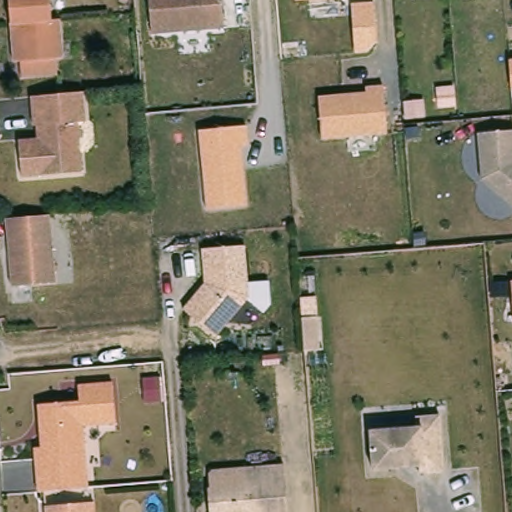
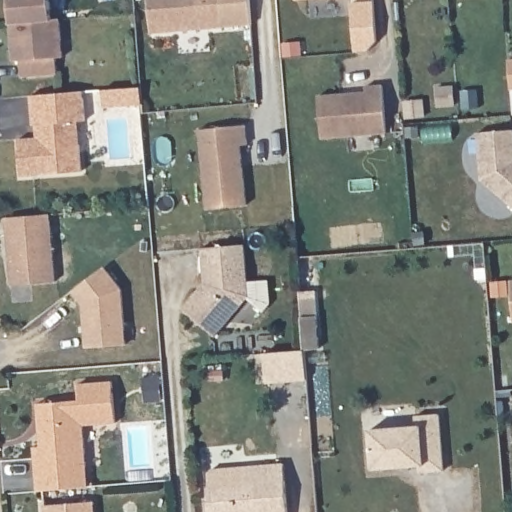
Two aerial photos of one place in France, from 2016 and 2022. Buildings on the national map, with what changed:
unchanged [(4,0),(53,0),(56,21),(6,26),(4,0)]
unchanged [(228,26),(156,34),(152,0),(225,0),(228,26)]
unchanged [(66,55),(59,53),(61,76),(18,78),(17,61),(11,59),(6,26),(56,21),(60,20),(66,55)]
unchanged [(512,57),(512,91),(511,91),(507,57),(512,57)]
unchanged [(367,89),(366,83),(381,82),(387,131),(322,137),(318,93),(367,89)]
unchanged [(61,91),(81,90),(84,119),(71,120),(74,143),(79,142),(81,169),(21,175),(18,138),(41,136),(41,123),(33,124),(30,94),(61,91)]
unchanged [(512,124),(512,185),(497,172),(493,125),(512,124)]
unchanged [(252,126),(254,146),(247,146),(253,206),(214,210),(205,131),(252,126)]
unchanged [(40,218),(47,217),(54,284),(10,289),(3,221),(40,218)]
unchanged [(252,246),(257,298),(224,337),(191,310),(213,284),(210,250),(252,246)]
new [(86,347),(83,304),(73,291),(105,267),(123,290),(126,344),(86,347)]
unchanged [(78,398),(76,380),(115,377),(119,421),(86,423),(91,484),(38,489),(33,444),(40,443),(36,402),(78,398)]
unchanged [(414,428),(413,418),(437,416),(442,472),(418,474),(417,467),(371,471),(368,432),(414,428)]
unchanged [(246,467),(285,463),(290,512),(212,512),(210,488),(248,484),(246,467)]
unchanged [(95,500),(96,512),(46,512),(46,505),(95,500)]

